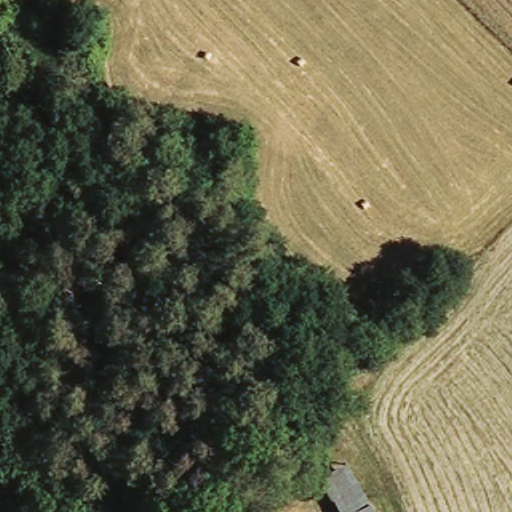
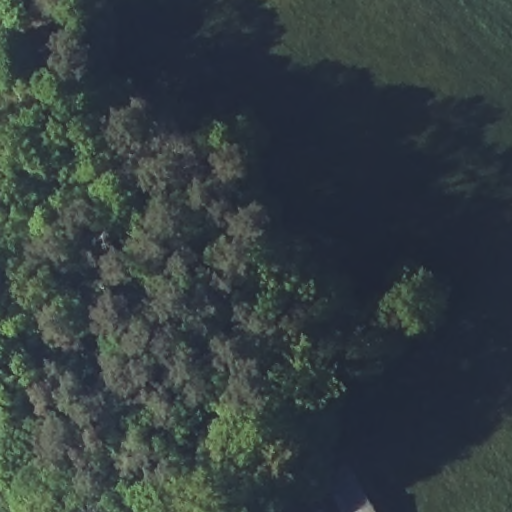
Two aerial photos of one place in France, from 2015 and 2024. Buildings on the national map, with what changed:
unchanged [(345,460),(370,502),(375,512),(339,512),(317,471),(345,460)]

